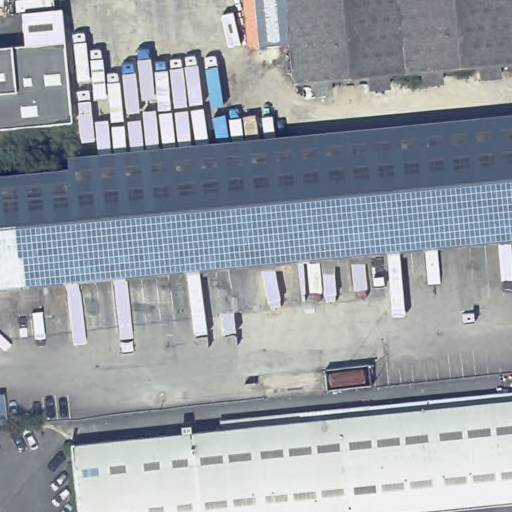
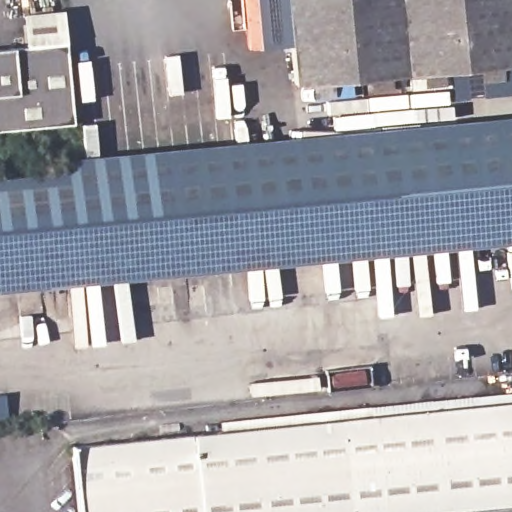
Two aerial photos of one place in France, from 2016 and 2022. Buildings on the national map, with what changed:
unchanged [(310,88),(293,90),(285,0),(512,0),(512,69),(501,71),(502,84),(480,86),(479,73),(443,76),(444,89),(423,91),(422,78),(389,81),(391,94),(370,96),(369,83),(332,86),(333,100),(311,102),(310,88)]
unchanged [(62,14),(65,44),(24,48),(21,18),(62,14)]
unchanged [(24,48),(65,44),(72,126),(0,133),(0,52),(24,49),(24,48)]
unchanged [(66,161),(512,120),(512,134),(67,175),(66,161)]
unchanged [(0,283),(0,181),(67,175),(512,134),(512,237),(0,283)]
unchanged [(0,294),(0,283),(512,237),(512,248),(0,294)]
unchanged [(7,426),(0,426),(0,395),(5,394),(7,426)]
unchanged [(443,512),(77,512),(70,447),(220,432),(370,417),(512,402),(512,505),(443,512)]
unchanged [(219,419),(369,404),(370,417),(220,432),(219,419)]

